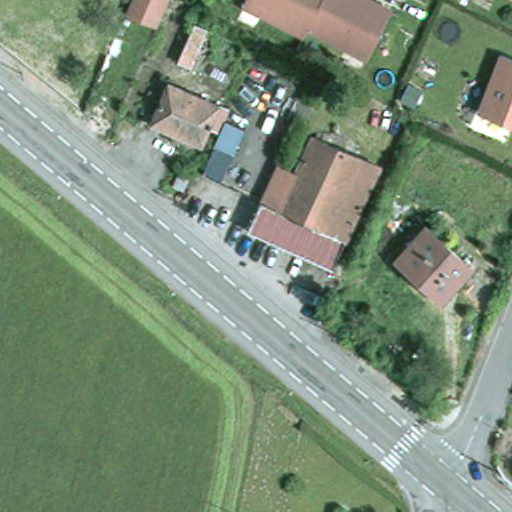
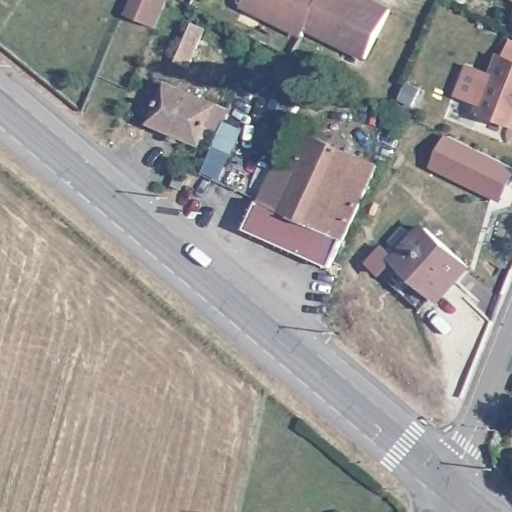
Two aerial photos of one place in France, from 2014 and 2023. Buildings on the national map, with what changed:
unchanged [(158,25),(153,22),(128,11),(133,0),(169,0),(158,25)]
unchanged [(301,35),(241,5),(244,0),(317,0),(304,27),(301,35)]
unchanged [(317,0),(359,0),(366,3),(367,0),(370,0),(388,9),(364,57),(304,27),(317,0)]
unchanged [(206,29),(189,67),(176,61),(193,22),(206,29)]
unchanged [(502,53),(512,57),(512,123),(479,110),(502,53)]
unchanged [(419,86),(412,102),(401,97),(408,81),(419,86)]
unchanged [(152,122),(168,83),(218,105),(201,145),(182,135),(178,143),(169,139),(173,132),(152,122)]
new [(450,134),(512,165),(512,177),(501,199),(434,165),(450,134)]
unchanged [(301,172),(317,135),(383,165),(336,267),(252,229),(282,164),(301,172)]
unchanged [(183,191),(171,185),(180,168),(191,173),(183,191)]
unchanged [(435,292),(397,258),(426,226),(469,266),(455,282),(441,298),(435,292)]

